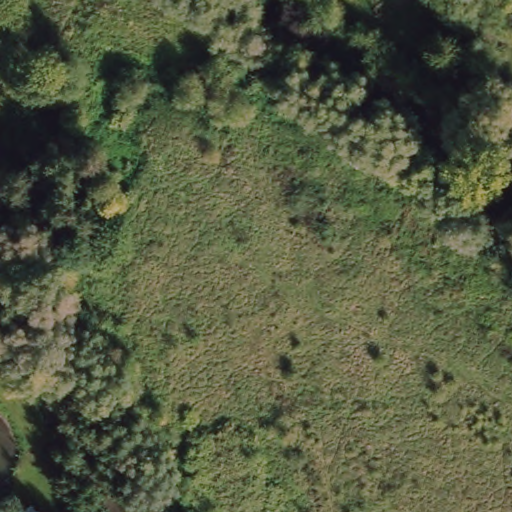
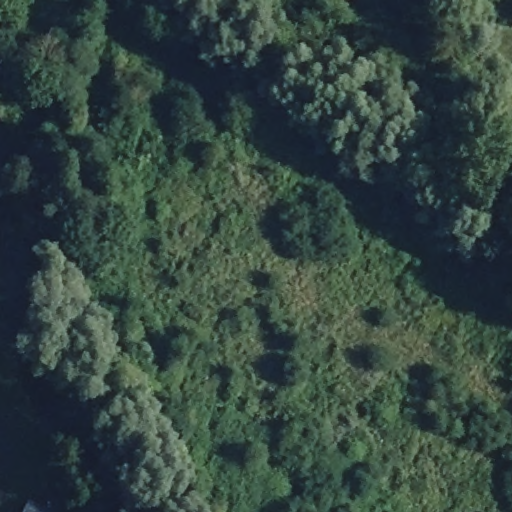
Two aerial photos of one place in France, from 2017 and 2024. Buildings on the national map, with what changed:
unchanged [(30,512),(23,512),(24,510),(30,512)]

